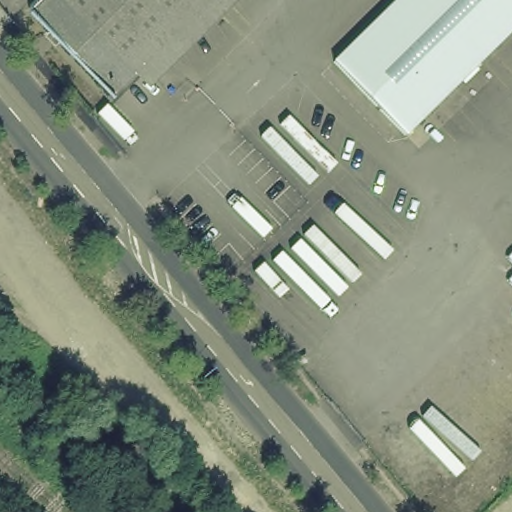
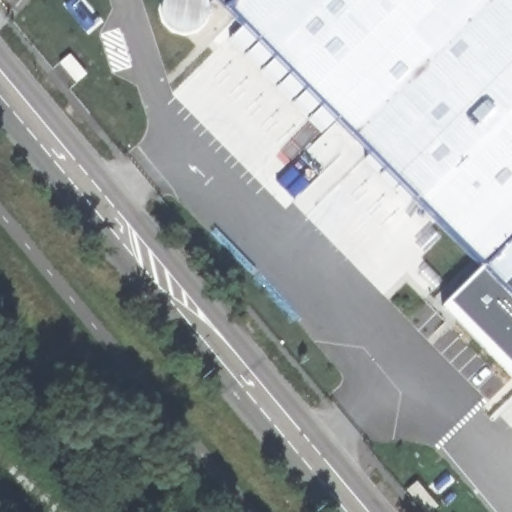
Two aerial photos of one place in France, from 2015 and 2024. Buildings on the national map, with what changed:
demolished [(25,0),(225,0),(117,106),(25,0)]
new [(162,5),(162,2),(163,0),(205,0),(206,1),(207,4),(208,6),(208,10),(208,12),(208,15),(207,18),(206,20),(204,23),(203,25),(201,26),(198,29),(197,30),(194,31),(191,33),(188,33),(186,34),(183,34),(181,33),(178,33),(175,31),(173,31),(171,29),(168,27),(167,25),(165,23),(163,21),(163,18),(162,16),(161,13),(161,10),(161,8),(162,5)]
new [(217,2),(215,0),(512,0),(512,237),(483,266),(217,2)]
demolished [(330,61),(389,0),(512,0),(512,23),(405,131),(330,61)]
new [(69,55),(86,74),(76,82),(60,63),(69,55)]
new [(429,229),(438,238),(424,251),(416,242),(429,229)]
new [(512,237),(512,379),(442,307),(483,266),(512,237)]
new [(428,267),(442,281),(433,289),(419,275),(428,267)]
new [(417,482),(437,506),(429,512),(424,512),(407,491),(417,482)]

